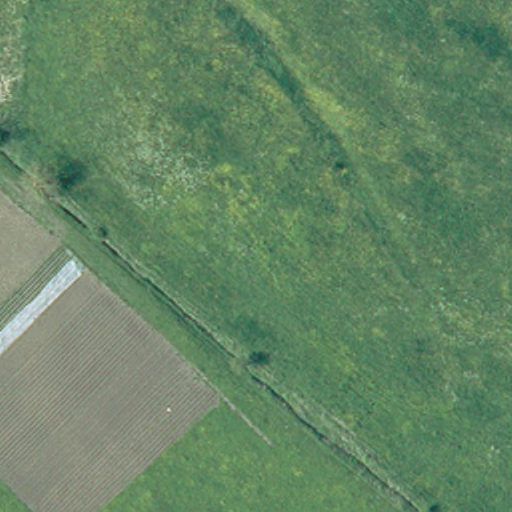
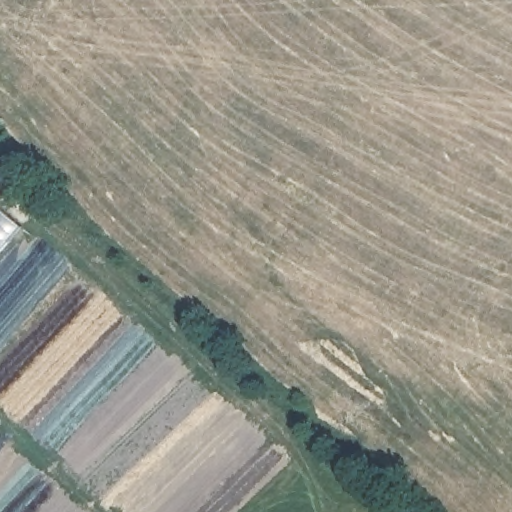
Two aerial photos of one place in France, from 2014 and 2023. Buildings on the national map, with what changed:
new [(22,226),(0,251),(0,206),(22,226)]

